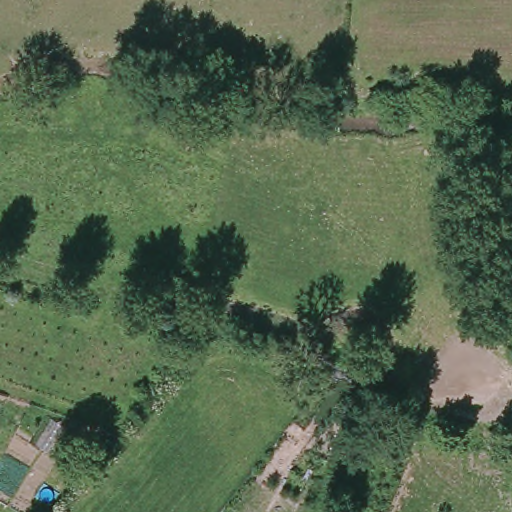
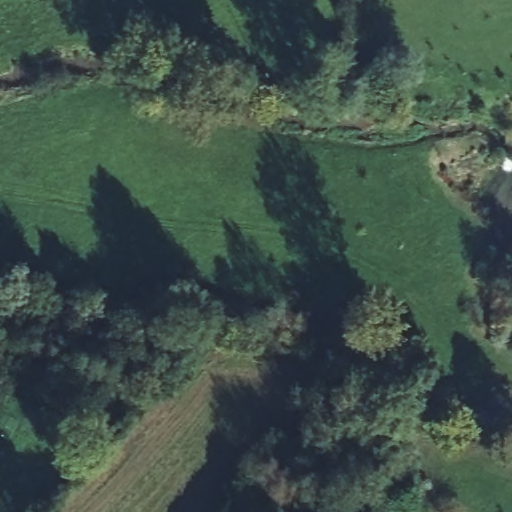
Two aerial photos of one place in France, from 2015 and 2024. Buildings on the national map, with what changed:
unchanged [(503,151),(512,149),(512,160),(505,161),(503,151)]

